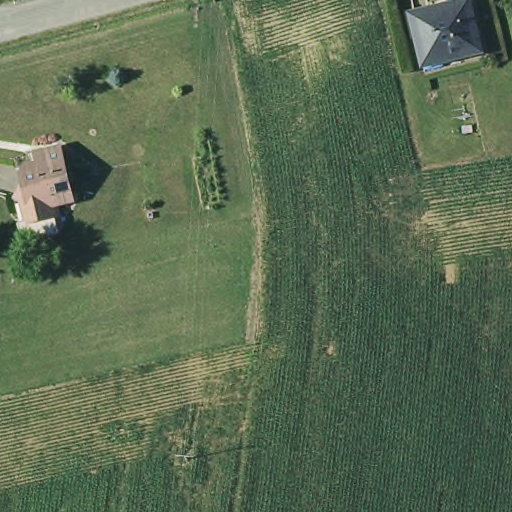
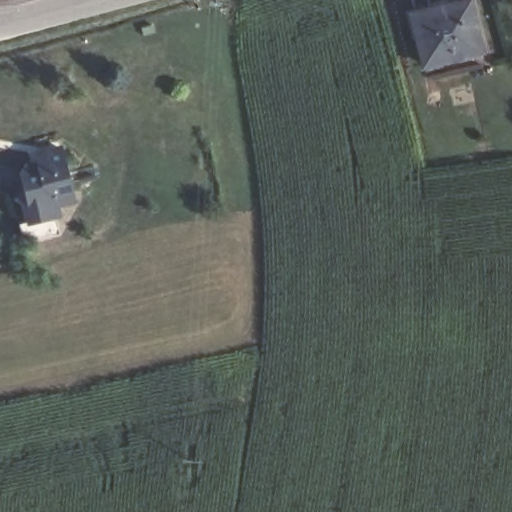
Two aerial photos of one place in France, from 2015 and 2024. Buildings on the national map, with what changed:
unchanged [(442,7),(467,2),(479,51),(453,57),(442,7)]
unchanged [(411,15),(442,7),(453,57),(423,64),(411,15)]
unchanged [(60,146),(75,198),(55,204),(57,215),(38,220),(36,215),(31,217),(22,189),(30,165),(41,162),(38,152),(60,146)]

